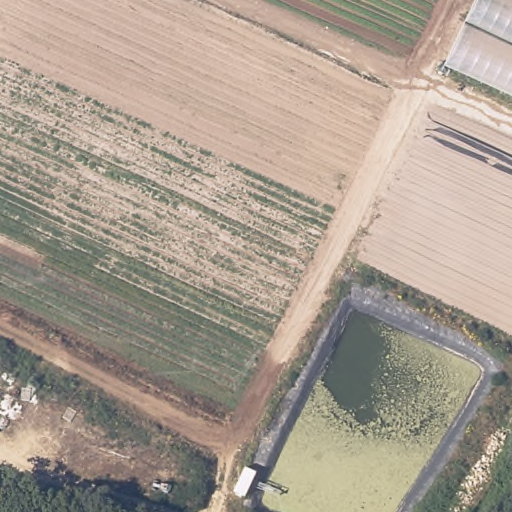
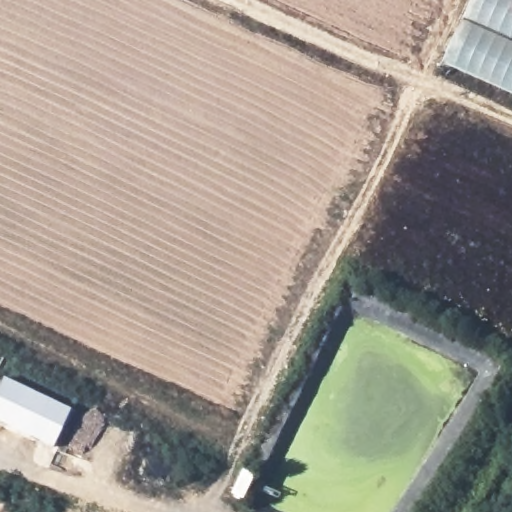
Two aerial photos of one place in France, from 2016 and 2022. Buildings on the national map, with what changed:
unchanged [(445,61),(474,0),(512,0),(512,90),(445,61)]
new [(0,423),(0,387),(5,378),(70,410),(51,448),(0,423)]

